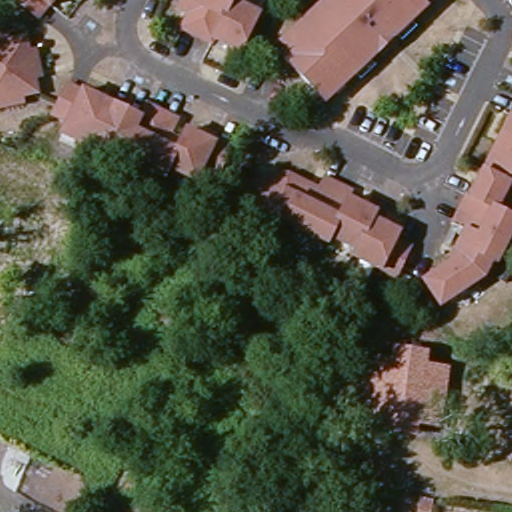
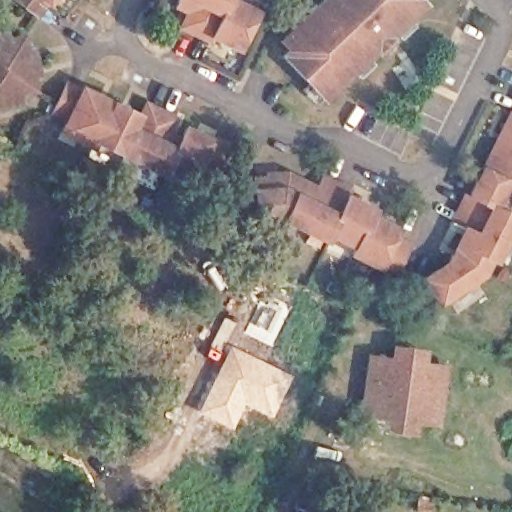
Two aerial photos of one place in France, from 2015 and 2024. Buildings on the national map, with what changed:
unchanged [(46,18),(22,0),(59,0),(46,18)]
unchanged [(237,0),(264,13),(246,51),(219,39),(217,42),(187,29),(194,14),(182,8),(184,4),(186,0),(238,0),(237,0)]
unchanged [(327,0),(419,0),(426,7),(392,38),(396,42),(382,55),(378,51),(326,100),(285,57),(291,51),(282,41),(291,34),(327,0)]
unchanged [(5,40),(21,37),(24,52),(31,51),(36,75),(29,77),(32,92),(16,96),(17,102),(0,106),(0,36),(3,35),(5,40)]
unchanged [(177,134),(190,140),(197,124),(225,138),(227,134),(241,141),(227,170),(212,164),(206,176),(179,162),(174,171),(107,137),(103,144),(72,128),(77,117),(64,110),(79,79),(92,86),(94,84),(151,113),(157,100),(187,115),(177,134)]
unchanged [(477,190),(481,192),(490,174),(494,166),(506,141),(510,134),(512,129),(512,248),(507,257),(502,255),(494,271),(451,300),(434,275),(460,258),(463,250),(476,225),(463,219),(477,190)]
unchanged [(356,190),(352,197),(381,211),(377,218),(405,231),(401,240),(416,247),(401,276),(358,255),(362,249),(336,236),(332,242),(285,219),(247,221),(244,183),(261,181),(261,180),(292,177),(293,174),(317,185),(325,190),(331,178),(356,190)]
new [(228,343),(293,375),(272,421),(245,407),(234,429),(197,412),(228,343)]
unchanged [(360,409),(367,354),(390,357),(392,345),(421,348),(420,361),(442,364),(435,419),(412,416),(409,436),(380,432),(382,412),(360,409)]

